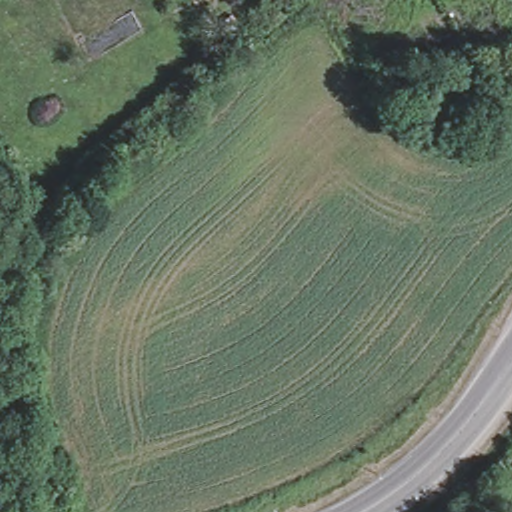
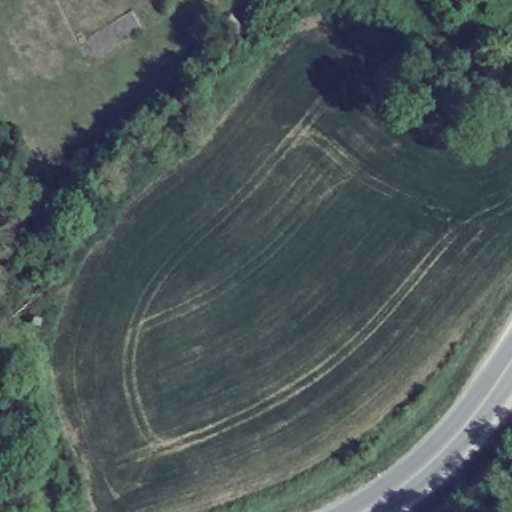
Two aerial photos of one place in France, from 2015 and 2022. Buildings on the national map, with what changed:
unchanged [(463,50),(442,57),(430,34),(451,24),(463,50)]

